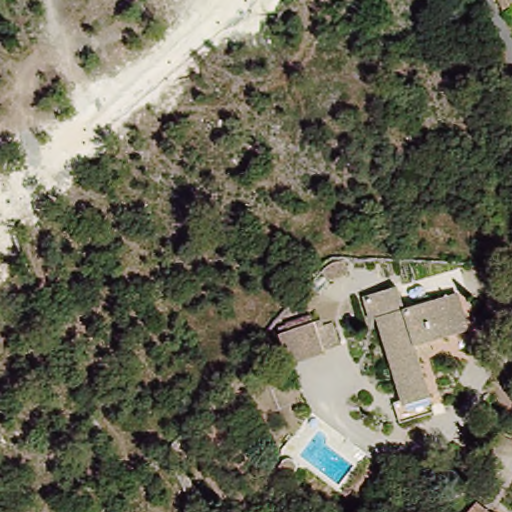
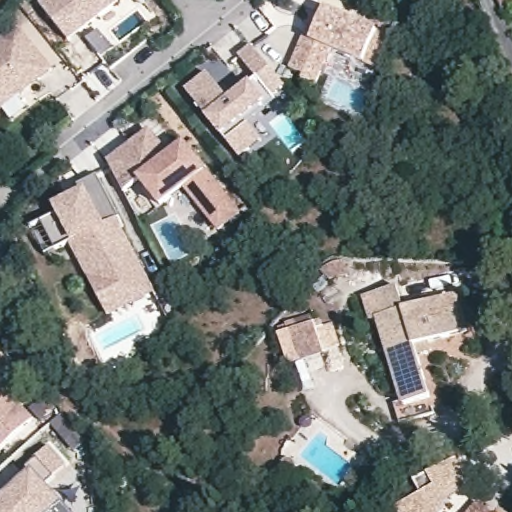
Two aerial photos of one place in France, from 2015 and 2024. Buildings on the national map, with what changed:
new [(120,0),(122,3),(69,40),(43,4),(49,0),(120,0)]
new [(319,6),(373,26),(360,63),(335,53),(305,41),(319,6)]
new [(49,69),(0,106),(0,38),(16,26),(49,69)]
new [(384,29),(397,34),(384,69),(371,64),(384,29)]
new [(335,53),(323,85),(303,78),(305,71),(295,67),(305,41),(335,53)]
new [(223,101),(242,85),(250,79),(236,61),(253,46),(285,84),(268,99),(269,101),(242,124),(255,139),(234,156),(180,92),(201,74),(223,101)]
new [(146,127),(168,159),(188,144),(239,214),(212,234),(178,185),(148,207),(131,185),(123,189),(110,167),(103,157),(146,127)]
new [(94,226),(110,217),(149,286),(101,313),(63,244),(41,257),(25,229),(47,217),(42,207),(73,189),(94,226)]
unchanged [(371,326),(364,328),(355,300),(389,290),(398,314),(444,299),(458,333),(412,350),(430,400),(400,410),(371,326)]
unchanged [(271,330),(313,319),(315,327),(329,323),(336,349),(278,365),(269,333),(271,330)]
new [(0,449),(0,384),(33,417),(0,449)]
new [(0,504),(33,474),(26,467),(54,441),(71,460),(52,479),(83,512),(0,512),(0,504)]
unchanged [(478,504),(489,512),(471,512),(478,504)]

